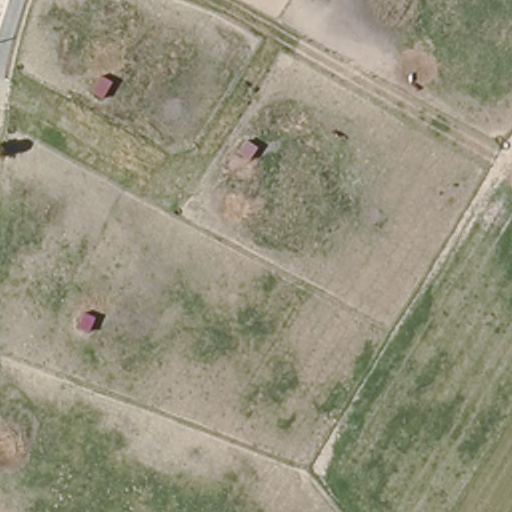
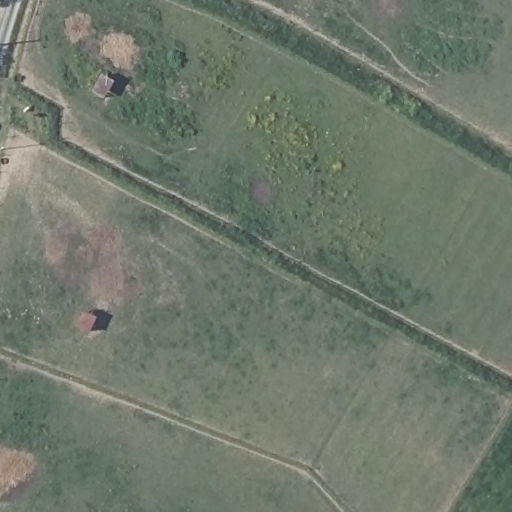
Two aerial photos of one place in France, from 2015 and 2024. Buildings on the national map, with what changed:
[]

